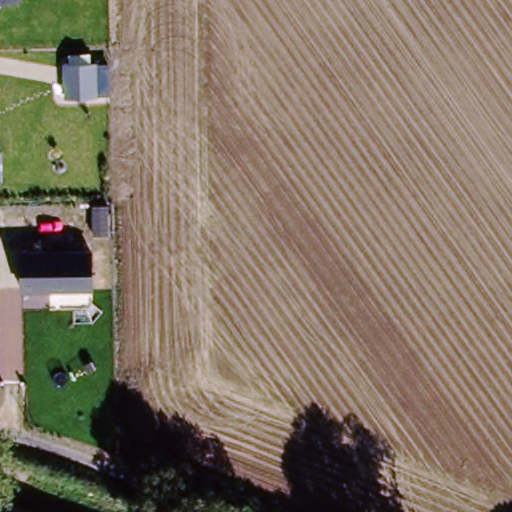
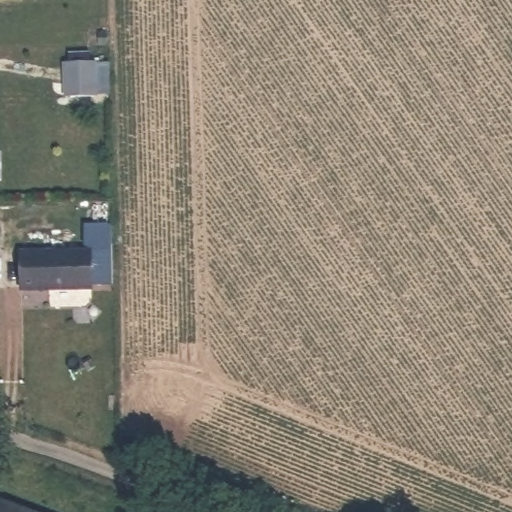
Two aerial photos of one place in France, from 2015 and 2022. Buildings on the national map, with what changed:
unchanged [(95,62),(96,97),(63,98),(62,63),(95,62)]
unchanged [(20,288),(19,250),(95,249),(93,294),(20,288)]
unchanged [(0,495),(42,512),(0,512),(0,495)]

